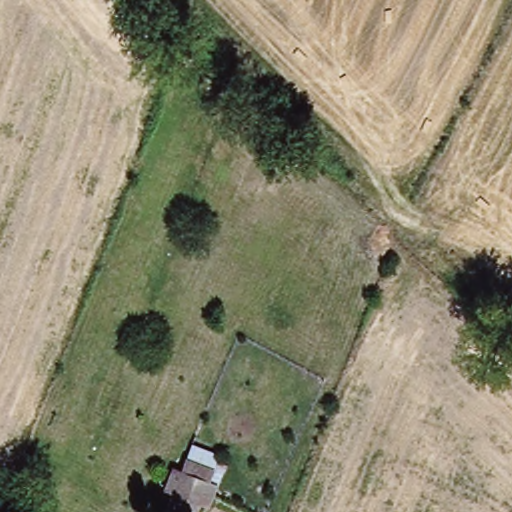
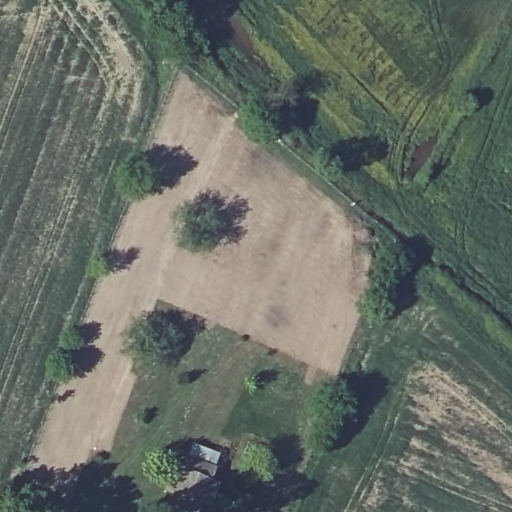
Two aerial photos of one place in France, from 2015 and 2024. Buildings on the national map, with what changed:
unchanged [(174,498),(178,487),(170,485),(180,462),(186,463),(190,452),(227,467),(215,502),(207,500),(202,510),(174,498)]

